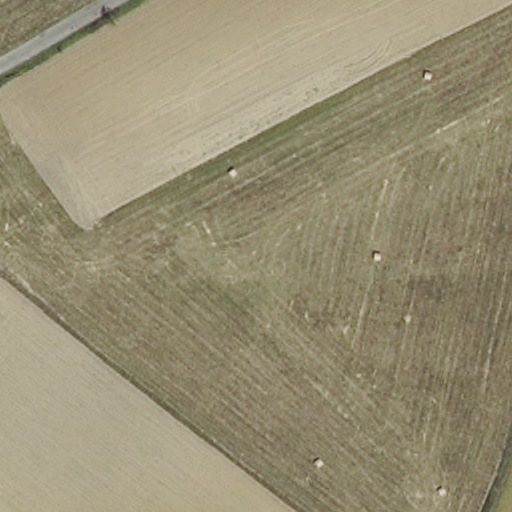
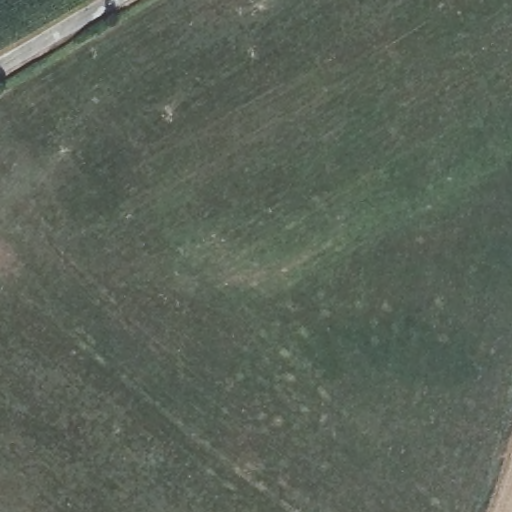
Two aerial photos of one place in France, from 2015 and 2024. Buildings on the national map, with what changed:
[]

